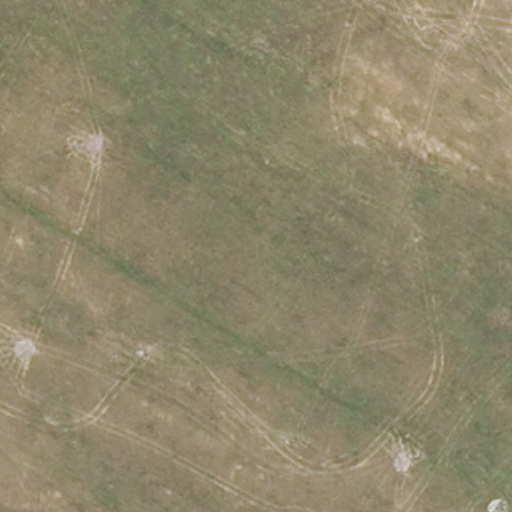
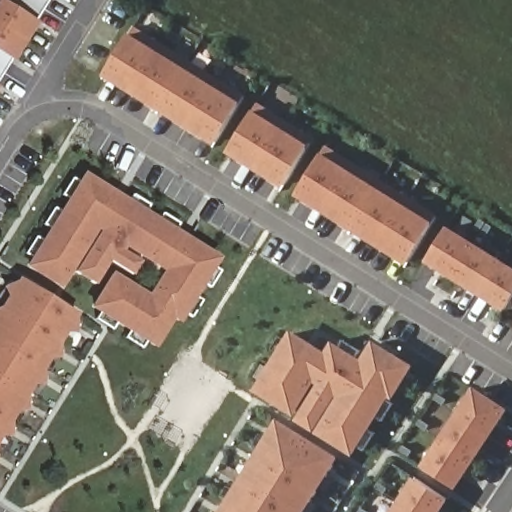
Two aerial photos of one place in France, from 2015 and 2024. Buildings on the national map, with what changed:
new [(0,0),(3,0),(11,5),(15,0),(53,0),(0,85),(0,0)]
new [(104,75),(130,32),(242,101),(215,145),(104,75)]
new [(227,152),(254,109),(311,145),(284,187),(227,152)]
new [(295,195),(321,151),(435,221),(407,265),(295,195)]
new [(180,324),(175,320),(156,349),(92,308),(114,272),(150,295),(164,272),(143,258),(132,275),(110,261),(96,285),(73,270),(62,289),(26,267),(86,171),(221,257),(180,324)]
new [(505,311),(426,261),(448,225),(512,265),(512,300),(505,311)]
new [(0,309),(20,277),(79,314),(0,441),(0,309)]
new [(393,400),(390,397),(355,455),(254,391),(292,330),(326,351),(333,340),(363,358),(375,340),(415,365),(393,400)]
new [(422,467),(476,386),(510,410),(456,490),(422,467)]
new [(305,512),(220,512),(279,418),(340,457),(305,512)]
new [(415,477),(449,500),(441,512),(392,512),(415,477)]

